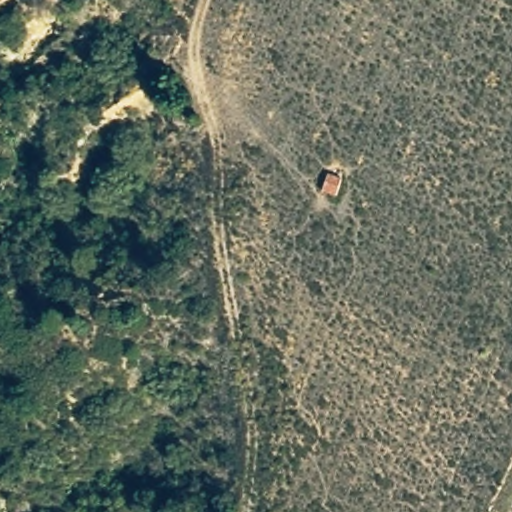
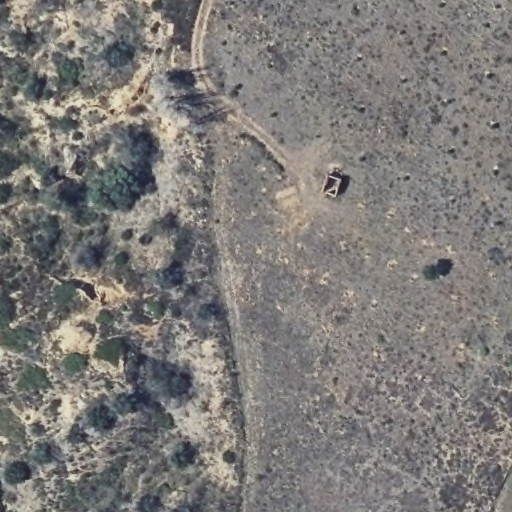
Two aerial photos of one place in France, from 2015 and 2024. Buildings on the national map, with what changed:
unchanged [(345,174),(341,194),(323,192),(327,175),(345,174)]

